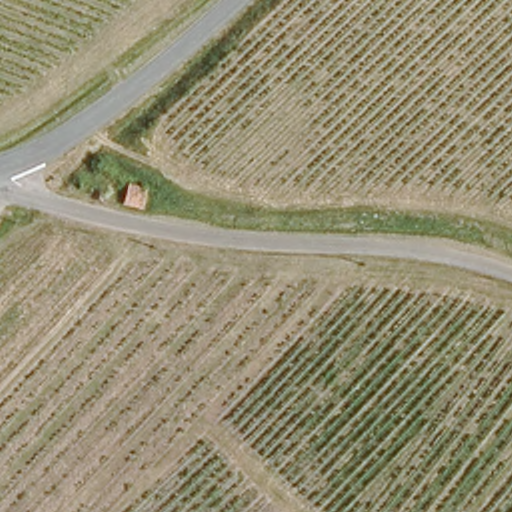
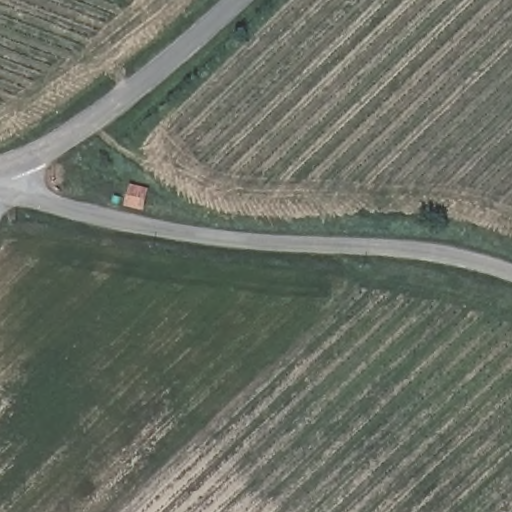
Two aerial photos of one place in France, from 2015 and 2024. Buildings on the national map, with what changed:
unchanged [(125,183),(144,186),(139,210),(120,204),(125,183)]

